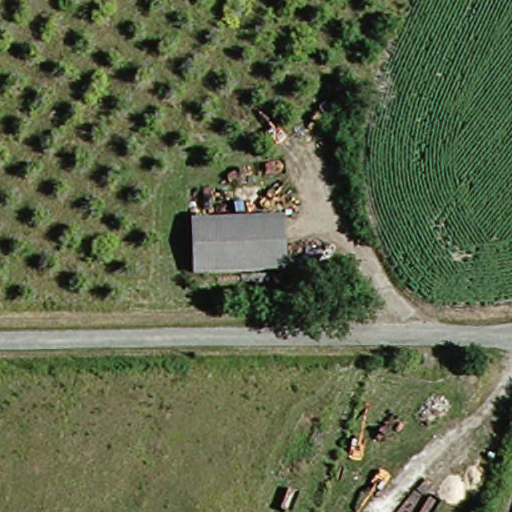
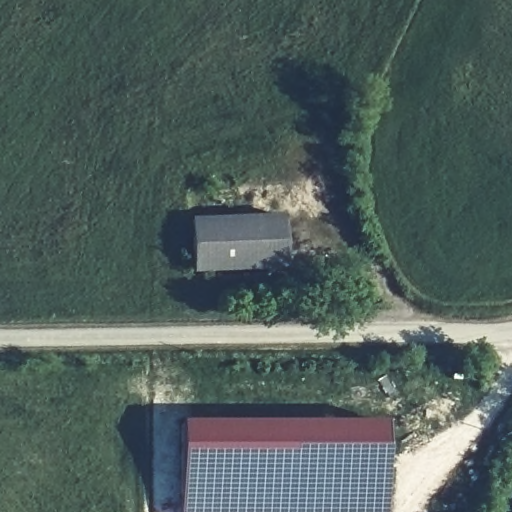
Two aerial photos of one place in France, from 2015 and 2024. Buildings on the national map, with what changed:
unchanged [(277,222),(277,274),(180,274),(180,222),(277,222)]
new [(181,423),(384,423),(385,512),(180,512),(181,423)]

